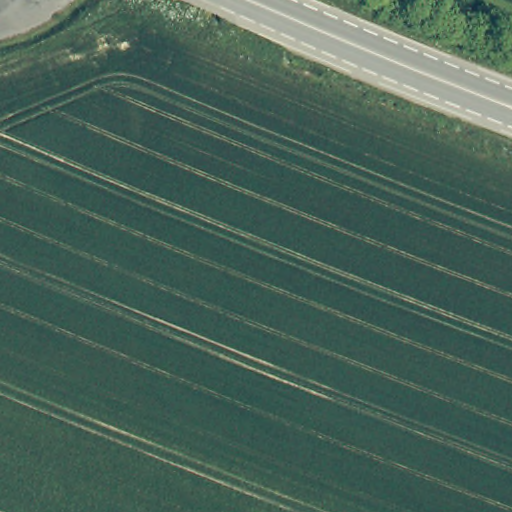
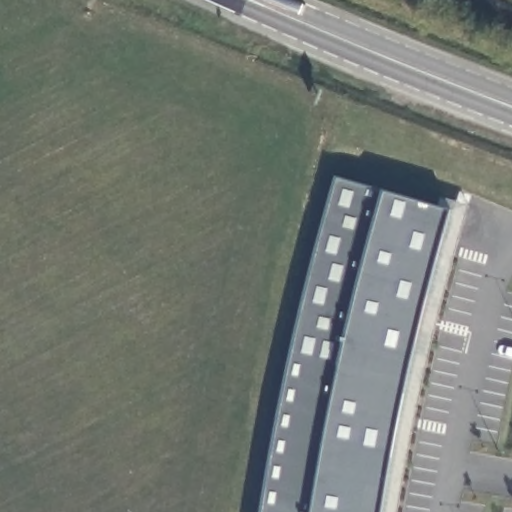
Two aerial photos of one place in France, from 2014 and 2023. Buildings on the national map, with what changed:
new [(452,211),(437,266),(417,342),(400,423),(383,512),(263,512),(271,461),(292,355),(317,252),(337,176),(385,190),(452,211)]

